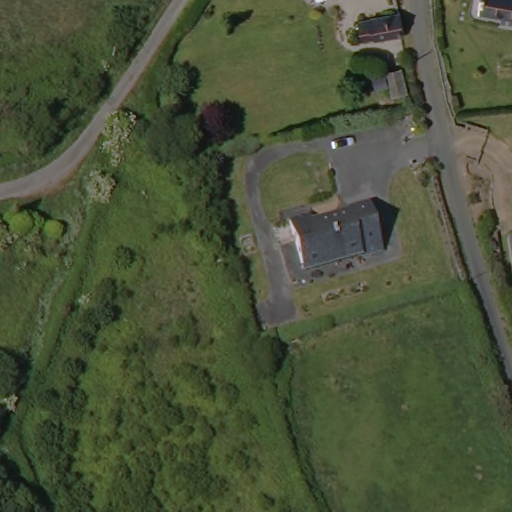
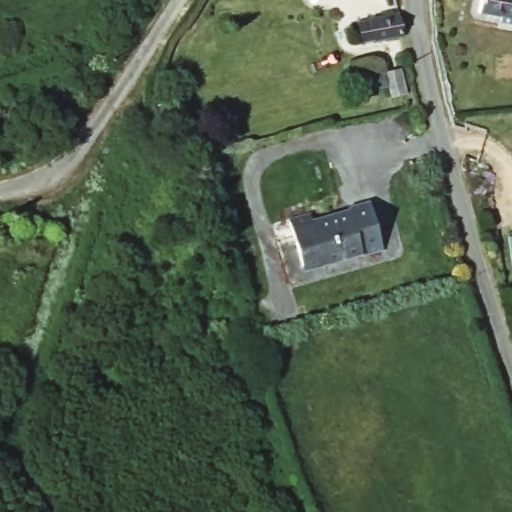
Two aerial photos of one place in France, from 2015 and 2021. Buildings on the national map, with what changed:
unchanged [(480,15),(482,0),(512,0),(512,18),(480,15)]
unchanged [(356,25),(401,19),(406,40),(361,46),(356,25)]
unchanged [(391,96),(387,72),(401,70),(406,94),(391,96)]
unchanged [(313,226),(348,215),(346,206),(370,199),(386,250),(363,258),(361,251),(303,270),(288,225),(309,219),(313,226)]
unchanged [(512,232),(512,269),(511,270),(506,233),(512,232)]

